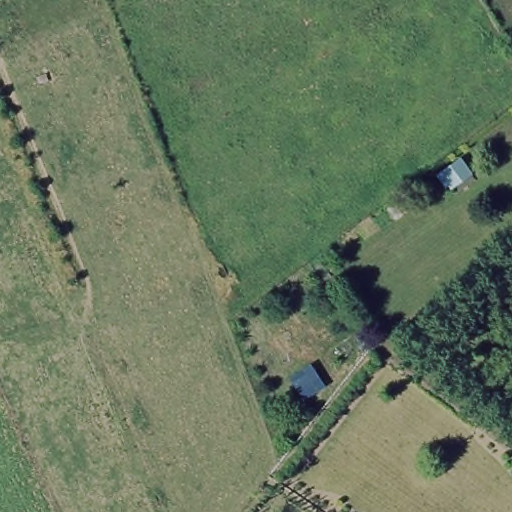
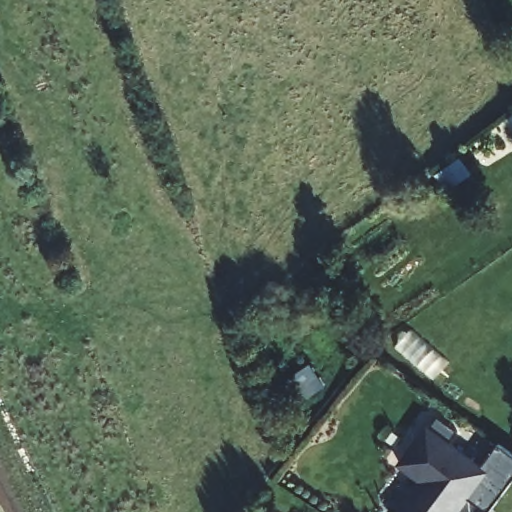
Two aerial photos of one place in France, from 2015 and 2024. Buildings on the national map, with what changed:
new [(512,455),(512,480),(488,512),(471,499),(461,512),(403,512),(419,482),(407,473),(415,462),(406,455),(425,430),(434,437),(438,431),(484,466),(500,445),(512,455)]

